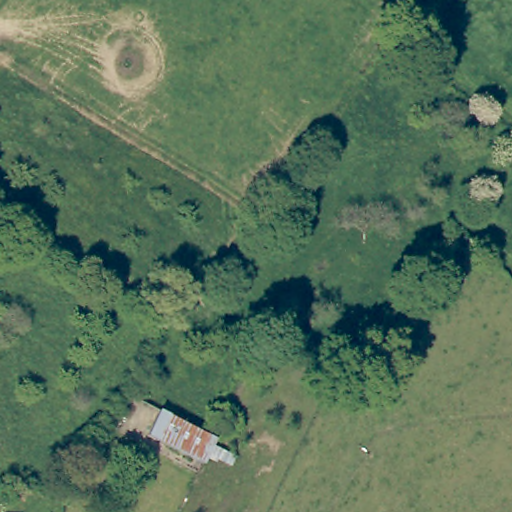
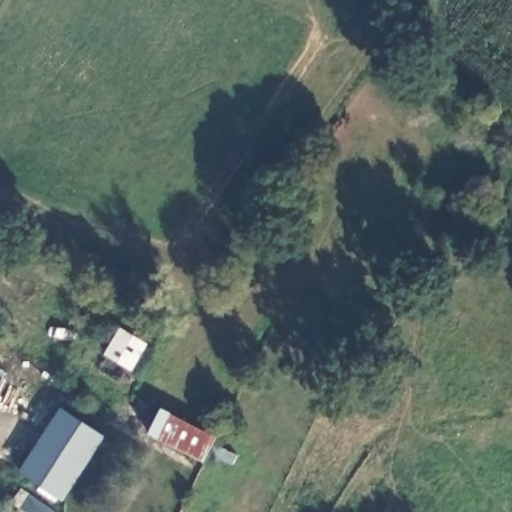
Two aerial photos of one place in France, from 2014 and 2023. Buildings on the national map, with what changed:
new [(60,407),(105,437),(62,502),(17,472),(60,407)]
unchanged [(157,410),(215,437),(201,462),(145,435),(157,410)]

